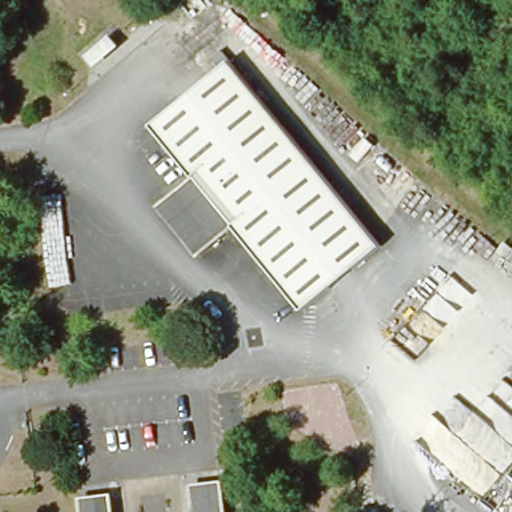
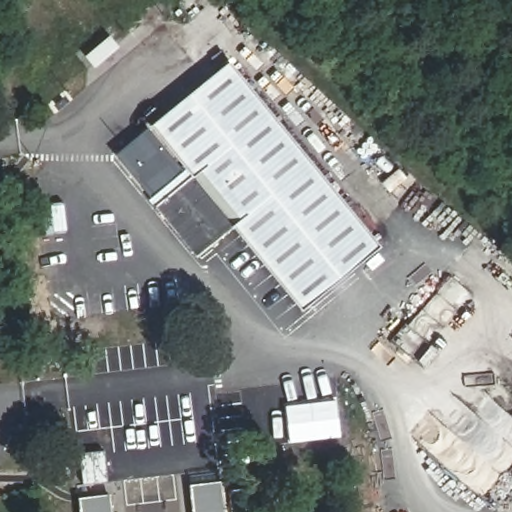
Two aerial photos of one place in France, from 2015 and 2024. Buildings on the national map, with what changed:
unchanged [(385,250),(304,316),(234,229),(200,256),(161,207),(196,180),(154,128),(234,64),(385,250)]
new [(151,125),(154,128),(196,180),(161,207),(157,210),(148,200),(150,198),(116,155),(151,125)]
new [(335,400),(340,437),(290,443),(285,406),(335,400)]
unchanged [(192,492),(227,490),(230,512),(194,512),(192,492)]
unchanged [(82,505),(114,501),(115,512),(83,512),(82,505)]

